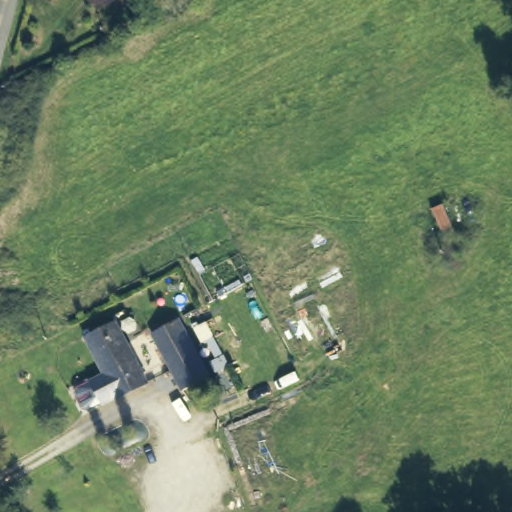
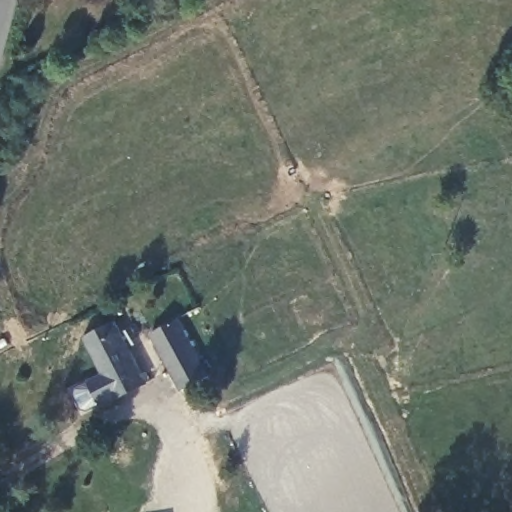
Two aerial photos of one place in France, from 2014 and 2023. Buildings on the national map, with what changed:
unchanged [(114,320),(145,380),(116,396),(114,393),(101,400),(90,378),(102,372),(84,336),(114,320)]
unchanged [(175,321),(205,378),(179,393),(147,336),(175,321)]

